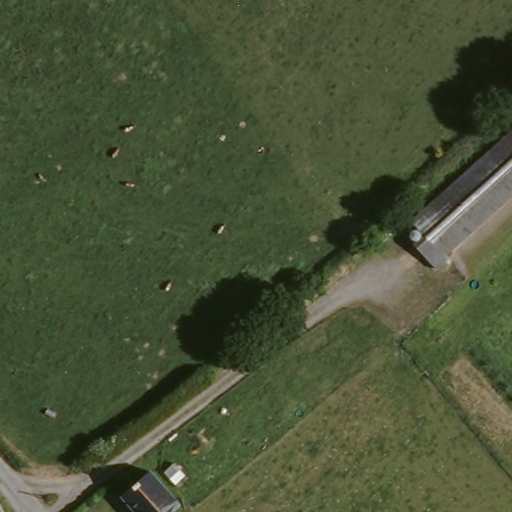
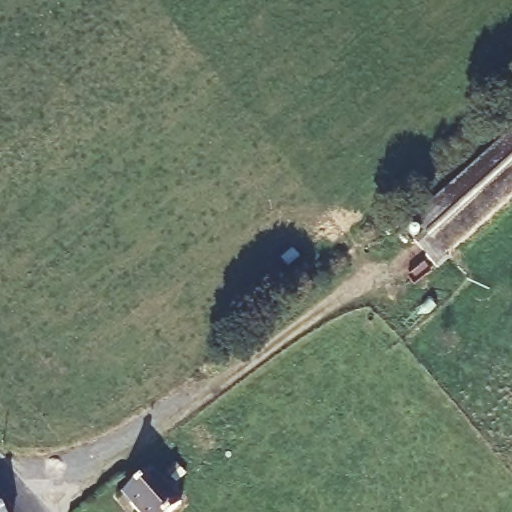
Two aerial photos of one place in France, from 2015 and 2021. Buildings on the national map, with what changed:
unchanged [(512,201),(443,261),(412,226),(512,137),(512,201)]
unchanged [(174,502),(163,512),(130,512),(115,494),(144,468),(174,502)]

